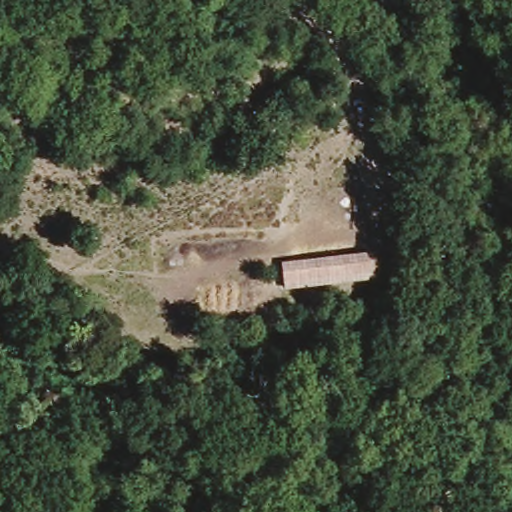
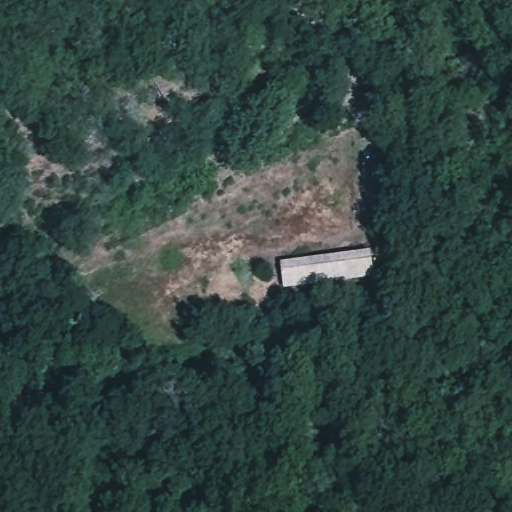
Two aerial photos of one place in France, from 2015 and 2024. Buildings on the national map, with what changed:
unchanged [(280,261),(373,248),(376,280),(284,290),(280,261)]

